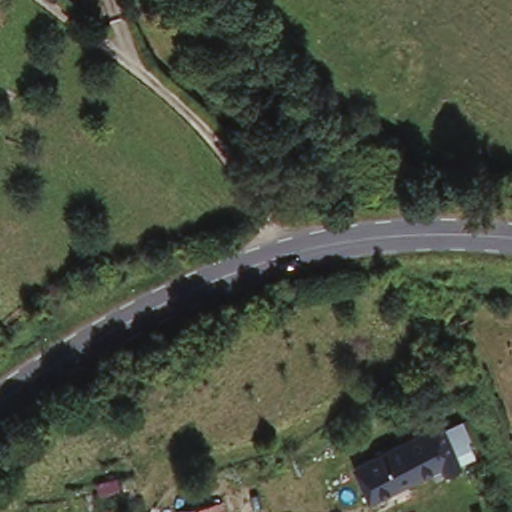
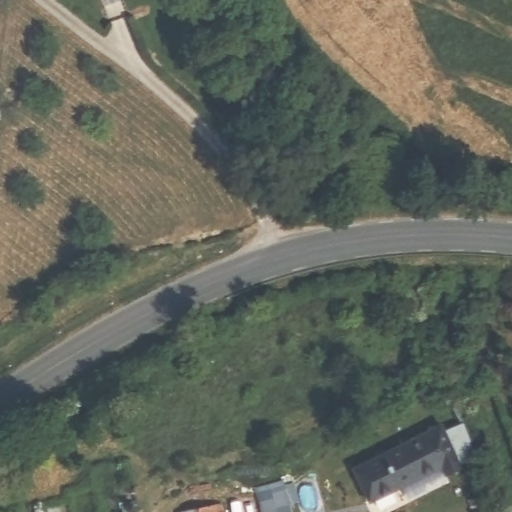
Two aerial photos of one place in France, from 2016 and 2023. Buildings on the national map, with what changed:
unchanged [(287,202),(283,170),(298,170),(301,200),(287,202)]
unchanged [(462,461),(449,467),(443,460),(370,497),(355,472),(440,425),(462,461)]
unchanged [(475,456),(462,461),(445,433),(465,426),(475,456)]
new [(284,485),(295,484),(299,502),(288,505),(290,512),(264,512),(257,487),(283,480),(284,485)]
unchanged [(228,512),(187,512),(226,504),(228,512)]

